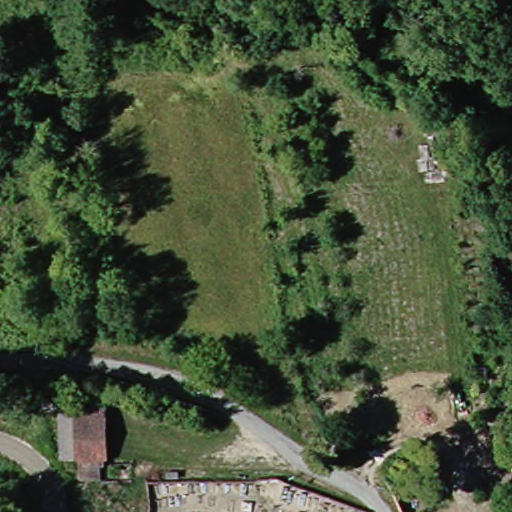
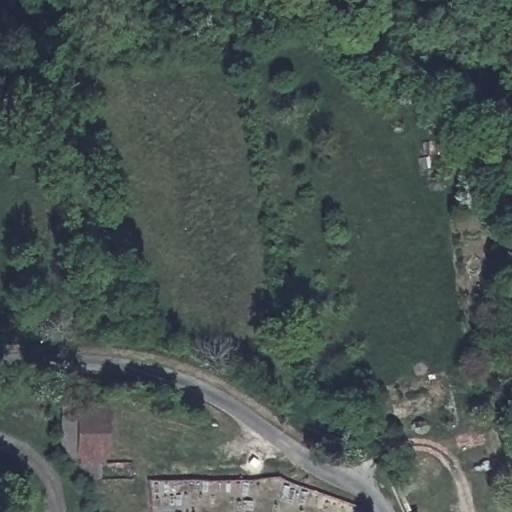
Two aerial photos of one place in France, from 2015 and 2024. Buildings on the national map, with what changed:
unchanged [(100,406),(107,456),(65,463),(58,412),(100,406)]

